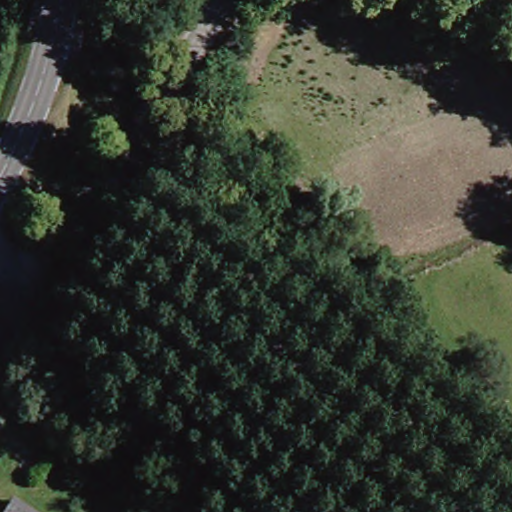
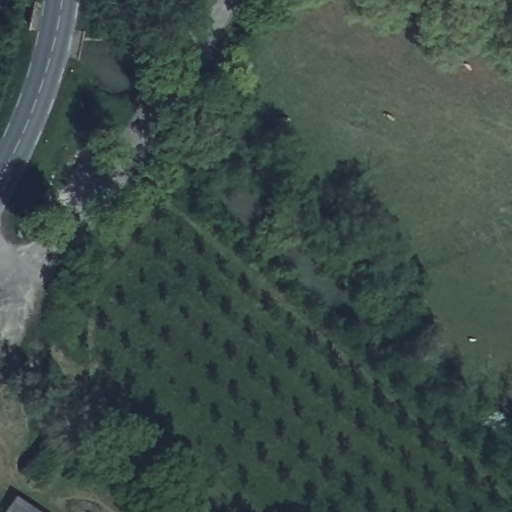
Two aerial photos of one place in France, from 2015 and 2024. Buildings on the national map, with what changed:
unchanged [(34,512),(10,512),(17,501),(34,512)]

